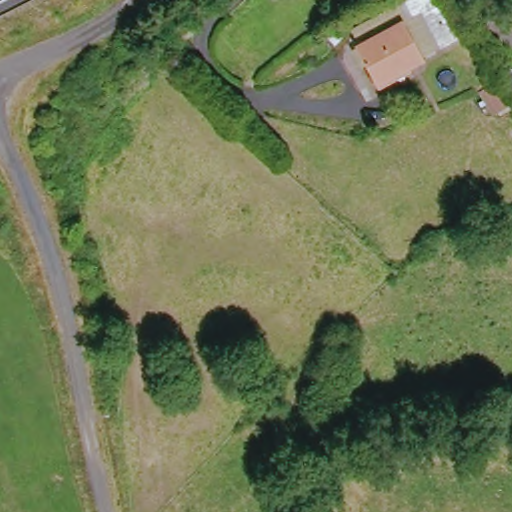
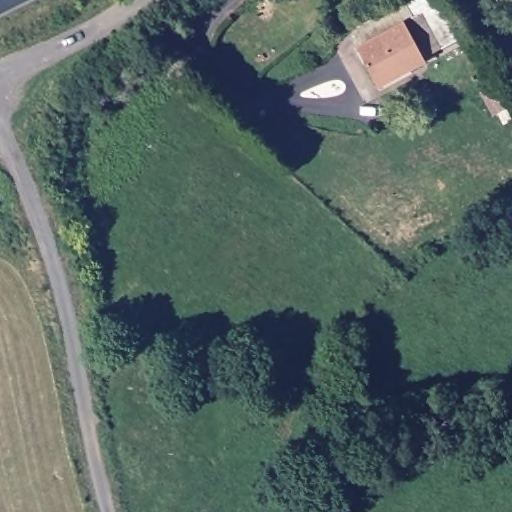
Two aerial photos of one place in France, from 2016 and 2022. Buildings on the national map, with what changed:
unchanged [(468,27),(446,39),(427,5),(419,12),(410,0),(452,0),(468,27)]
unchanged [(384,79),(363,44),(409,18),(429,52),(384,79)]

